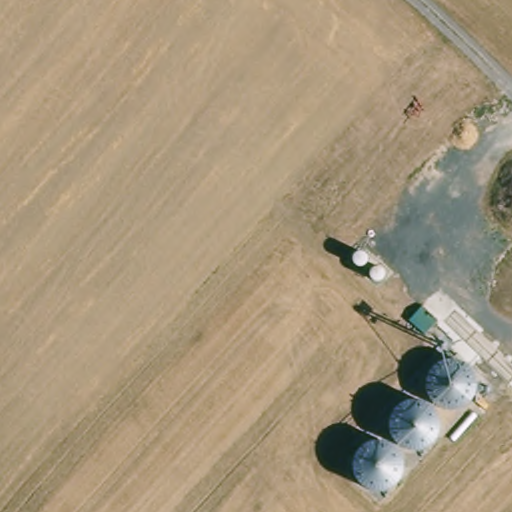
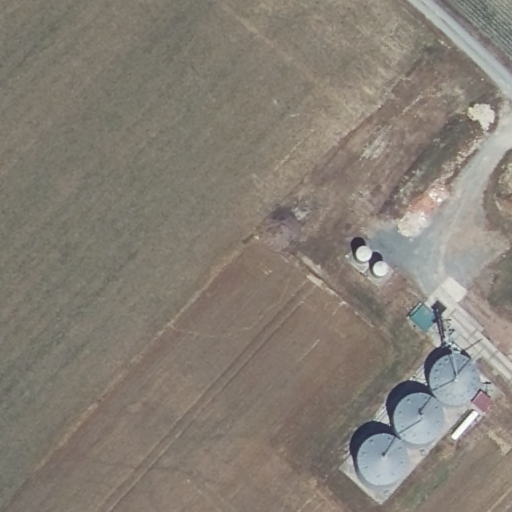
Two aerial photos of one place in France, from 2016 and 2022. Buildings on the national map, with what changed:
unchanged [(450,358),(455,358),(461,358),(469,363),(476,370),(479,380),(480,386),(478,392),(394,486),(390,489),(383,491),(373,490),(365,485),(360,480),(355,473),(353,467),(353,459),(357,451),(443,362),(450,358)]

